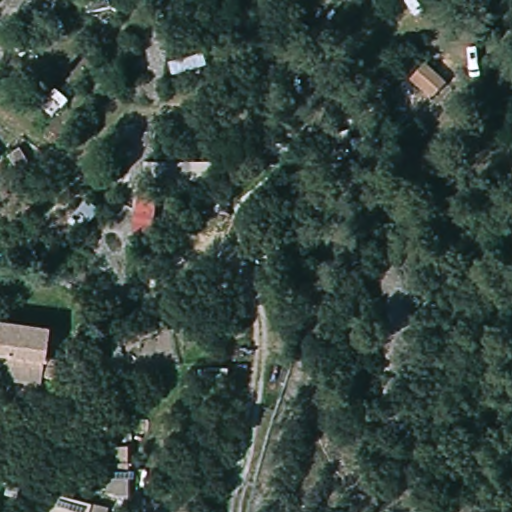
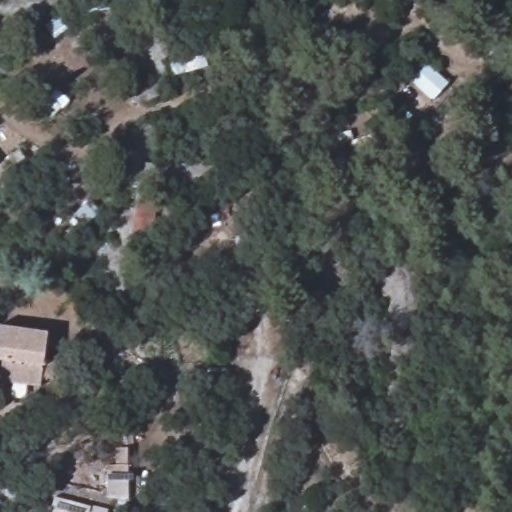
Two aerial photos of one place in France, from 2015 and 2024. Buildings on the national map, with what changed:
unchanged [(431,64),(455,87),(435,112),(410,85),(431,64)]
unchanged [(58,332),(47,396),(2,388),(5,365),(0,364),(0,323),(58,332)]
unchanged [(133,477),(115,480),(112,455),(130,453),(133,477)]

